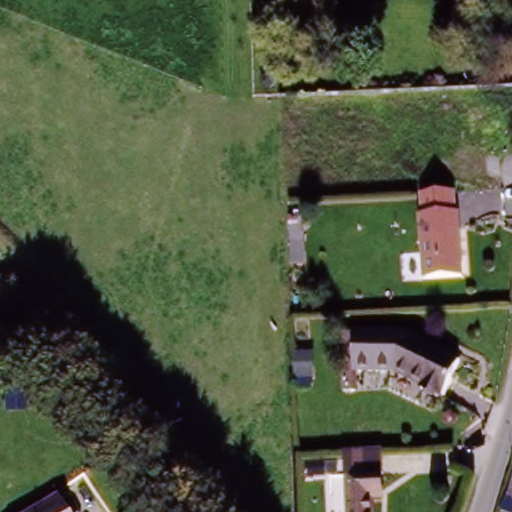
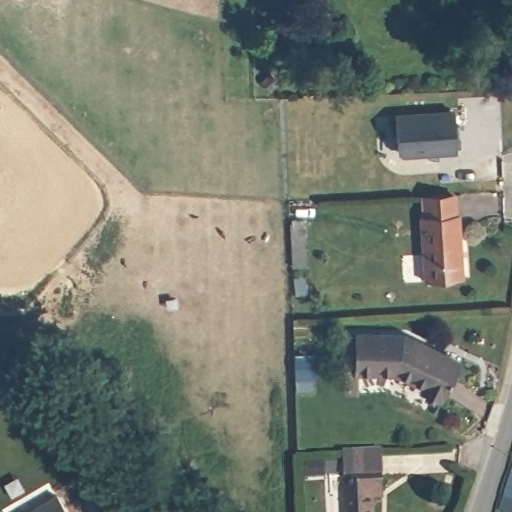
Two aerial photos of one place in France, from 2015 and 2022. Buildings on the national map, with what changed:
new [(402,155),(399,151),(396,113),(453,109),(457,151),(402,155)]
unchanged [(458,270),(416,272),(416,211),(421,211),(420,194),(453,191),(454,210),(457,211),(458,270)]
unchanged [(350,330),(401,330),(458,360),(439,396),(394,373),(350,370),(350,330)]
unchanged [(347,455),(381,454),(379,512),(347,512),(347,455)]
unchanged [(62,498),(71,512),(40,512),(62,498)]

